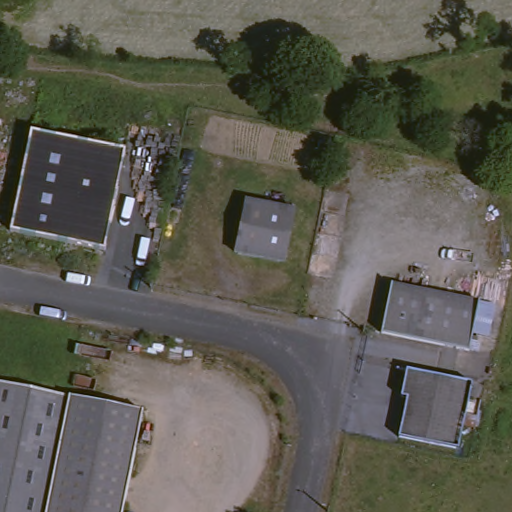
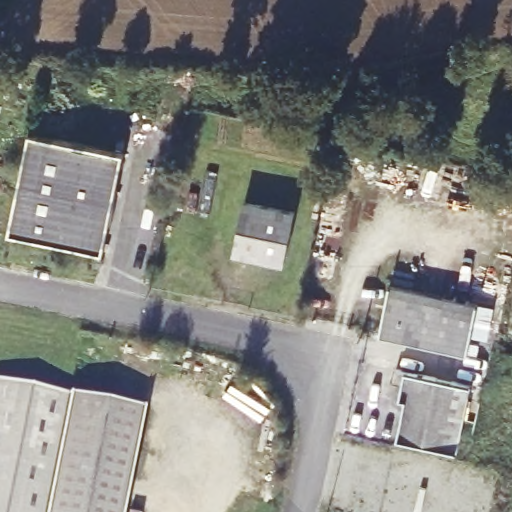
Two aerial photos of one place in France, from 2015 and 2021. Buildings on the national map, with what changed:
unchanged [(129,155),(110,253),(13,236),(34,137),(129,155)]
unchanged [(293,213),(285,265),(237,254),(247,202),(293,213)]
unchanged [(395,285),(467,301),(481,303),(493,306),(487,333),(474,331),(469,354),(384,336),(395,285)]
unchanged [(470,389),(457,453),(397,441),(406,402),(400,400),(406,375),(470,389)]
unchanged [(67,397),(44,512),(0,512),(0,384),(67,397)]
unchanged [(67,397),(140,410),(119,512),(44,512),(67,397)]

